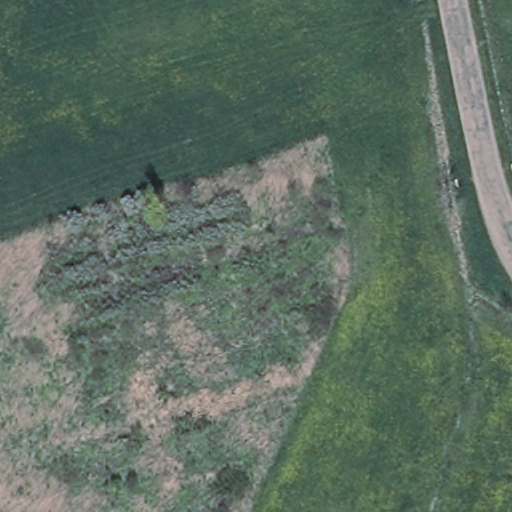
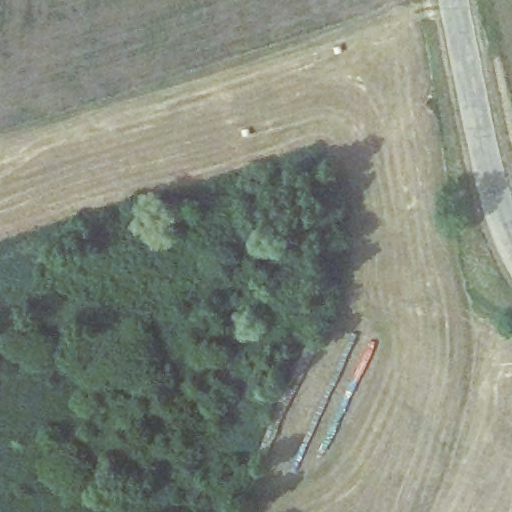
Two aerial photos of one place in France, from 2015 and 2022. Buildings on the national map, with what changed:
[]

